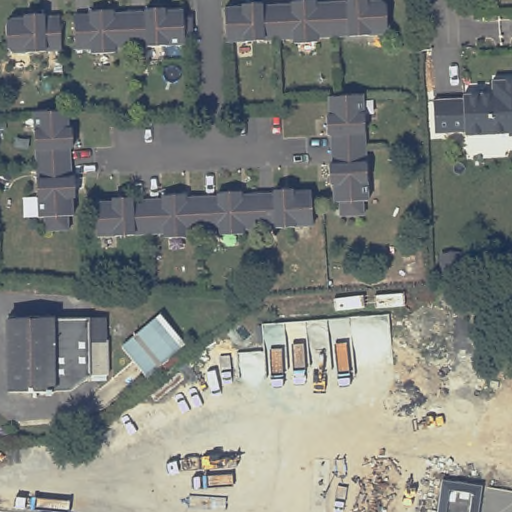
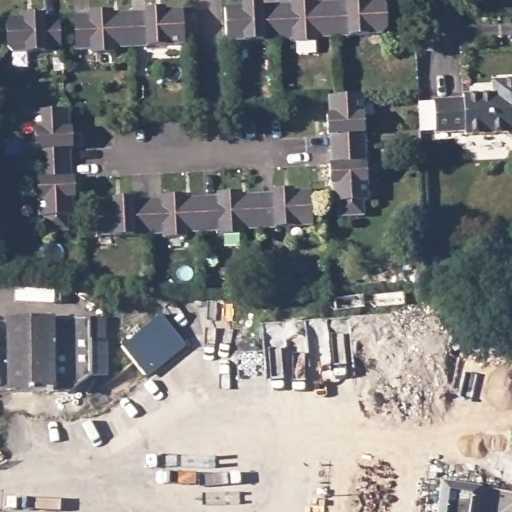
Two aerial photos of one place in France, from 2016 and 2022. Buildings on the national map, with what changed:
unchanged [(262,5),(278,5),(292,5),(294,3),(295,0),(317,0),(318,0),(319,3),(334,3),(347,2),(347,0),(369,0),(370,1),(381,1),(387,6),(387,25),(382,30),(334,32),(320,33),(320,37),(295,38),(295,34),(279,35),(227,37),(226,6),(242,5),(243,2),(260,1),(262,5)]
unchanged [(75,12),(92,11),(93,7),(115,7),(116,11),(131,10),(148,9),(149,5),(166,5),(166,9),(182,8),(183,14),(190,15),(191,30),(183,31),(184,39),(163,40),(132,41),(116,42),(116,46),(91,47),(91,43),(76,43),(75,12)]
unchanged [(58,49),(9,51),(4,47),(2,24),(6,20),(18,19),(19,15),(36,15),(36,18),(56,18),(58,49)]
unchanged [(439,132),(438,101),(467,100),(467,96),(498,94),(498,82),(512,81),(512,137),(511,133),(468,135),(468,131),(439,132)]
unchanged [(325,114),(324,94),(360,93),(363,145),(365,200),(359,201),(360,215),(337,216),(335,202),(329,202),(329,184),(325,184),(324,162),(328,162),(328,147),(327,134),(322,133),(321,115),(325,114)]
unchanged [(39,160),(36,107),(68,105),(69,122),(73,122),(74,142),(70,143),(71,159),(71,173),(75,173),(76,193),(72,193),(73,211),(66,211),(68,225),(47,226),(46,212),(41,212),(39,160)]
unchanged [(94,233),(94,225),(92,198),(110,197),(110,194),(130,193),(130,196),(145,196),(161,195),(161,192),(185,191),(186,194),(202,194),(217,193),(217,190),(240,189),(241,193),(258,192),(274,192),(274,188),(294,188),(294,191),(310,191),(311,202),(311,225),(259,227),(244,228),(244,233),(218,233),(218,228),(203,228),(188,230),(188,235),(163,236),(162,230),(146,231),(94,233)]
unchanged [(149,370),(126,342),(155,319),(178,348),(185,355),(155,378),(149,370)]
unchanged [(0,326),(91,324),(95,327),(95,349),(97,349),(97,381),(79,382),(59,396),(0,396),(0,326)]
unchanged [(476,512),(435,512),(440,482),(480,487),(476,512)]

